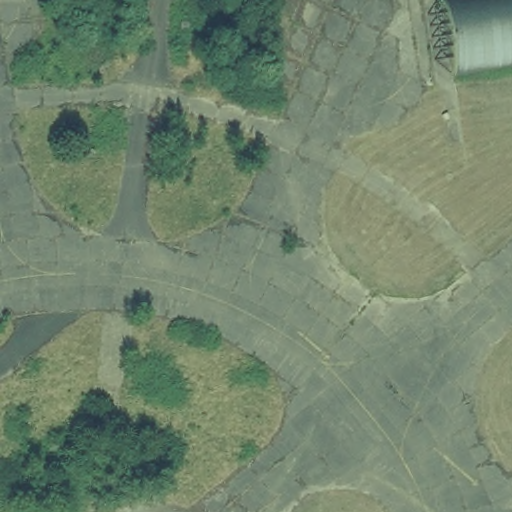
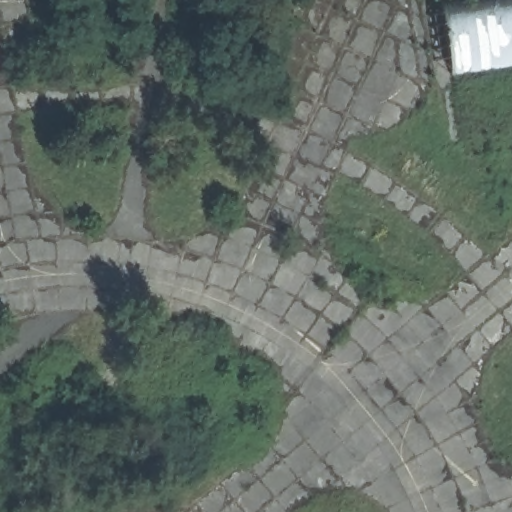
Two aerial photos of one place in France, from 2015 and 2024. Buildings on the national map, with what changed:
unchanged [(452,81),(443,6),(483,0),(512,0),(512,72),(452,81)]

